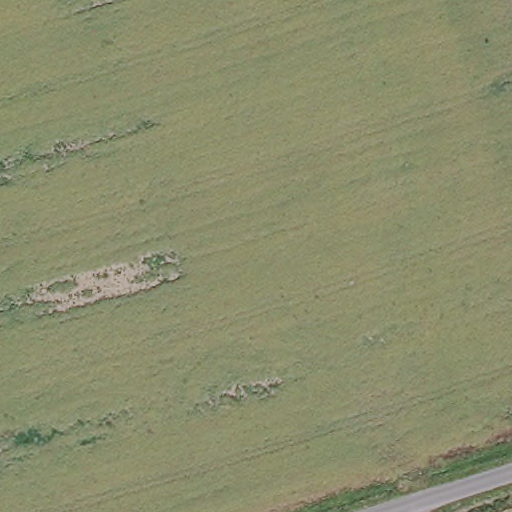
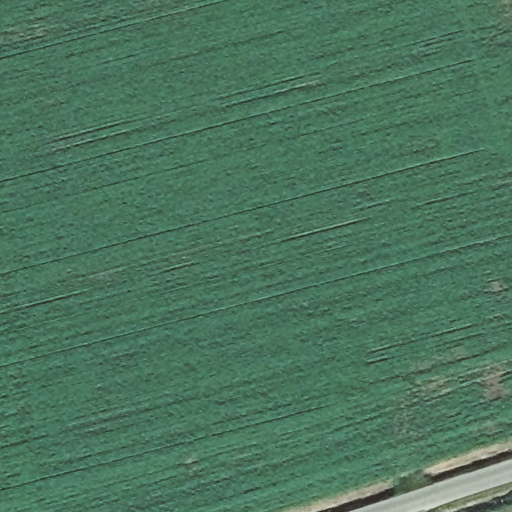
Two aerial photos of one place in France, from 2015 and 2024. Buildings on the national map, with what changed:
[]

